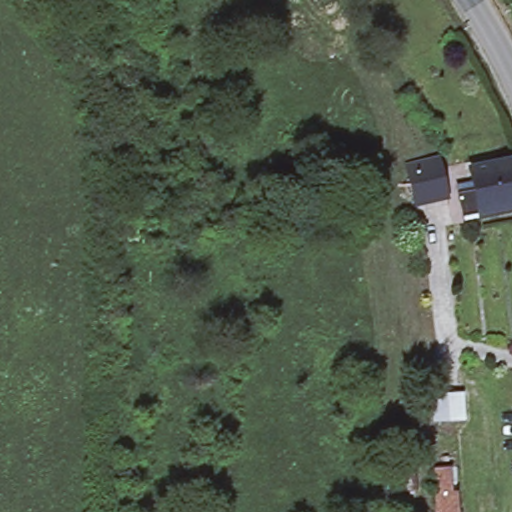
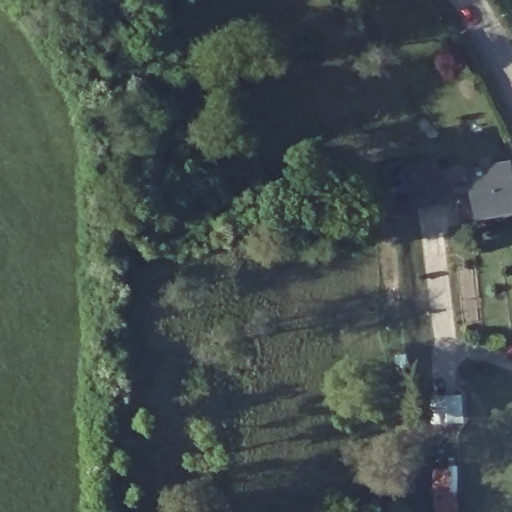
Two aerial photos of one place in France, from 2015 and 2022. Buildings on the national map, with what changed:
unchanged [(437,161),(446,198),(419,205),(411,168),(437,161)]
unchanged [(473,193),(469,171),(510,163),(512,173),(512,208),(478,215),(461,218),(457,196),(473,193)]
unchanged [(436,421),(434,397),(459,396),(461,420),(436,421)]
unchanged [(415,465),(418,492),(404,493),(402,466),(415,465)]
unchanged [(455,483),(457,508),(462,507),(462,512),(440,512),(439,484),(455,483)]

